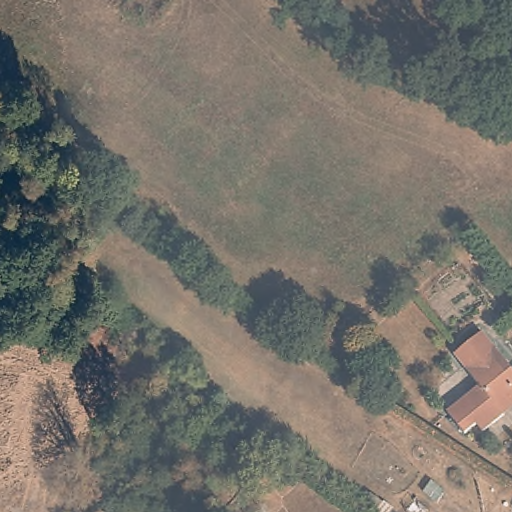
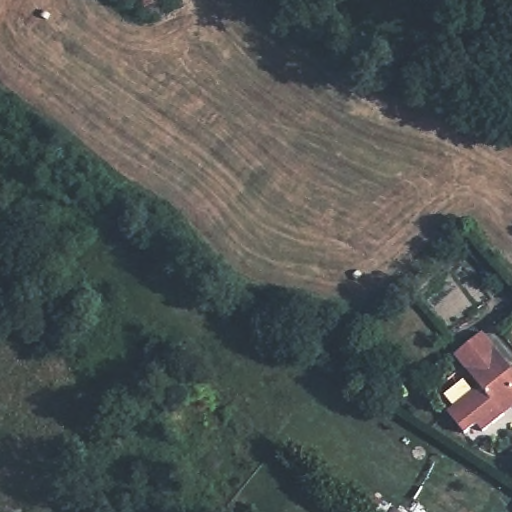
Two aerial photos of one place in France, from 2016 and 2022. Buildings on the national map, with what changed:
unchanged [(506,413),(485,432),(478,424),(466,433),(447,412),(478,386),(465,370),(492,346),(512,369),(512,404),(504,410),(506,413)]

